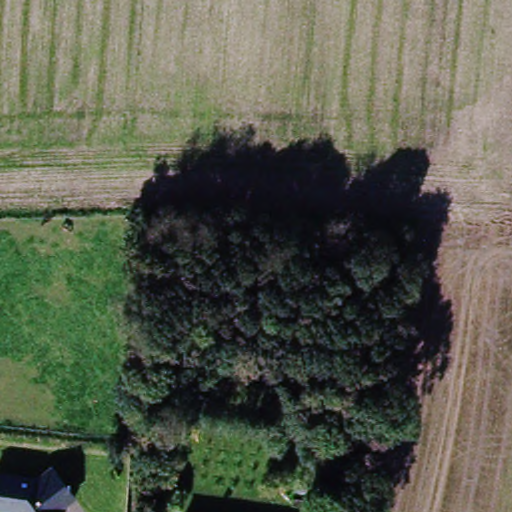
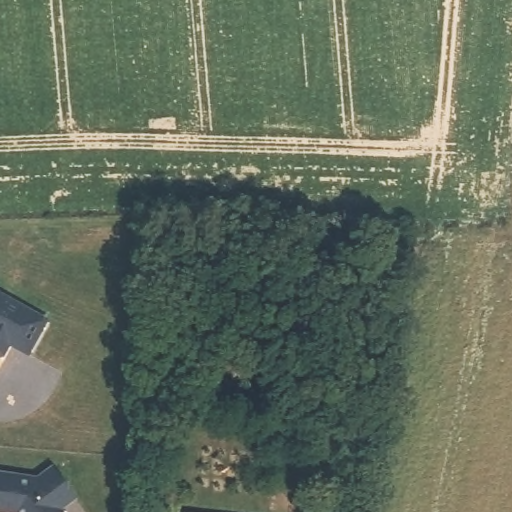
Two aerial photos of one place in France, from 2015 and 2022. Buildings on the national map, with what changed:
new [(46,321),(27,355),(9,345),(2,356),(0,357),(0,295),(46,321)]
unchanged [(43,480),(56,471),(79,502),(64,512),(0,512),(0,474),(43,480)]

